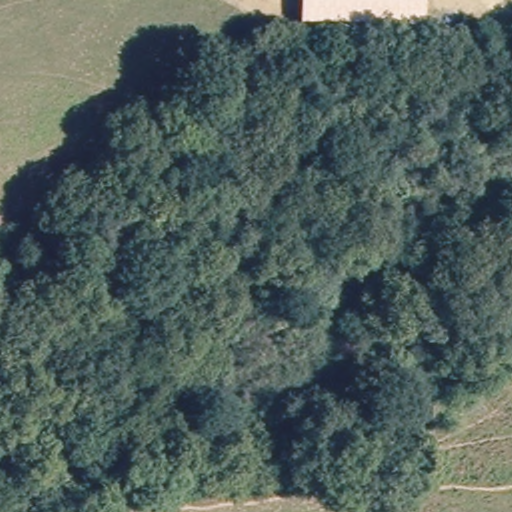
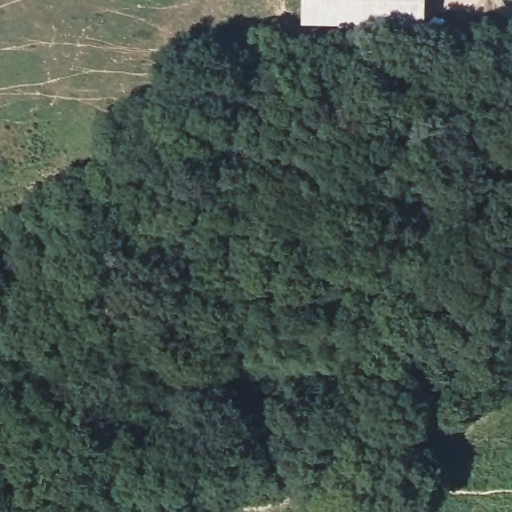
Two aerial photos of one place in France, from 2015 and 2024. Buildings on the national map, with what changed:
unchanged [(301,26),(302,0),(425,0),(424,30),(301,26)]

